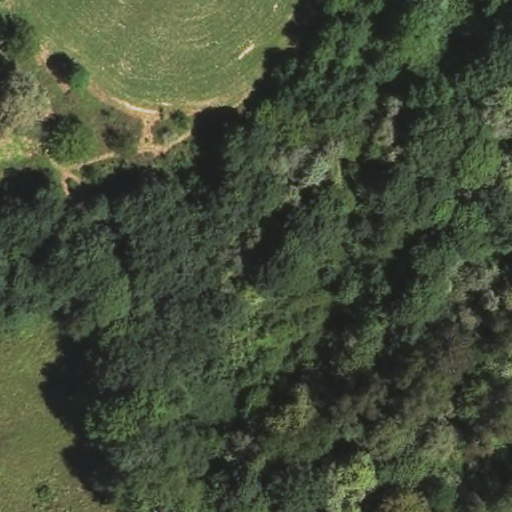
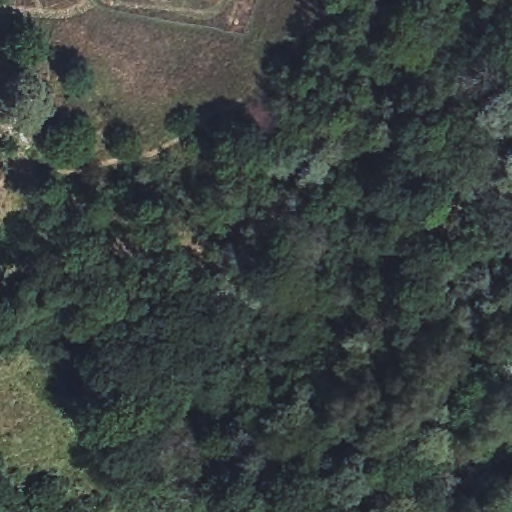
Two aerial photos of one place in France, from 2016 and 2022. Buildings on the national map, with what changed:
[]

